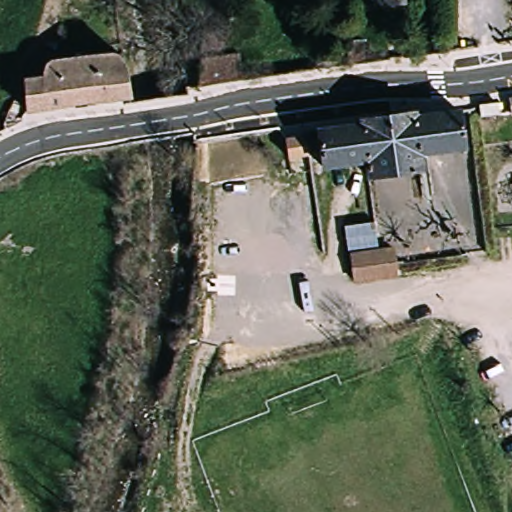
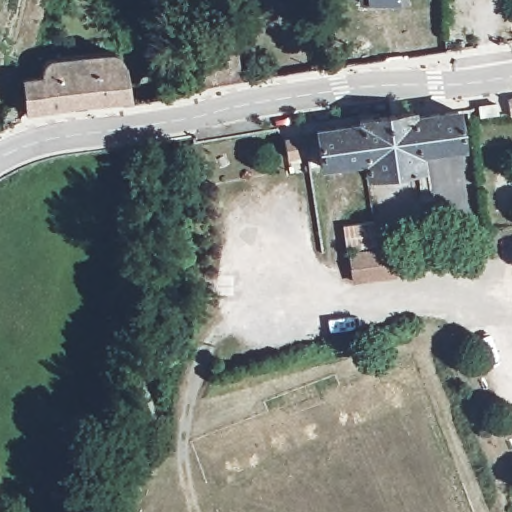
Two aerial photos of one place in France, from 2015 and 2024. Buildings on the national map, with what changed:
unchanged [(407,10),(367,11),(367,0),(407,0),(407,10)]
unchanged [(358,61),(347,63),(347,40),(358,39),(358,61)]
unchanged [(34,81),(46,78),(51,69),(63,66),(111,56),(123,62),(128,96),(33,115),(28,84),(34,81)]
unchanged [(240,82),(195,87),(195,63),(236,58),(240,82)]
unchanged [(512,99),(512,114),(510,100),(512,99)]
unchanged [(493,115),(482,116),(480,104),(491,102),(493,115)]
unchanged [(429,154),(433,199),(423,201),(422,200),(420,173),(369,180),(366,163),(320,170),(316,134),(362,128),(363,124),(415,117),(416,120),(460,114),(462,149),(429,154)]
unchanged [(395,254),(396,267),(398,279),(353,286),(352,273),(350,260),(395,254)]

